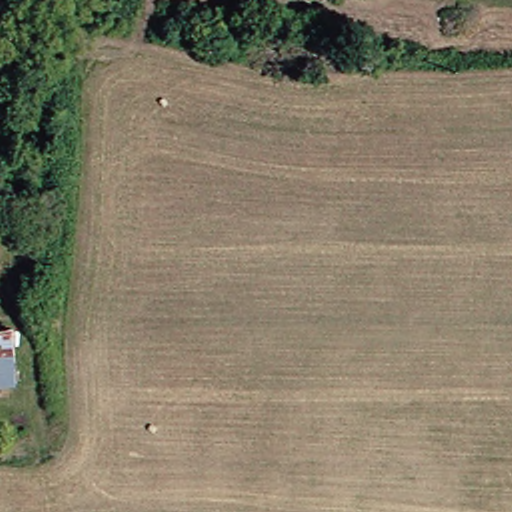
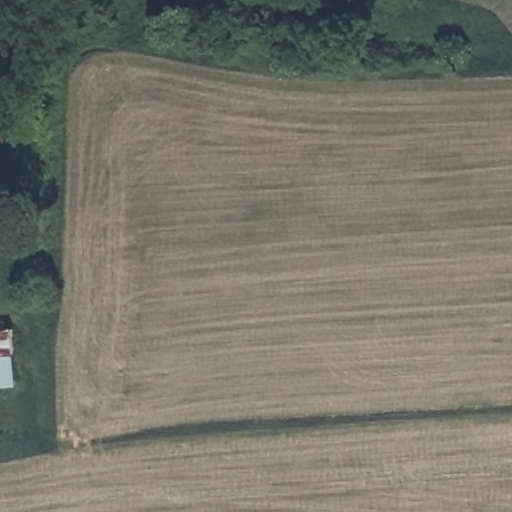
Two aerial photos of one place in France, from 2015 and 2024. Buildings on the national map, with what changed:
unchanged [(11,381),(1,384),(0,384),(0,332),(2,331),(11,381)]

